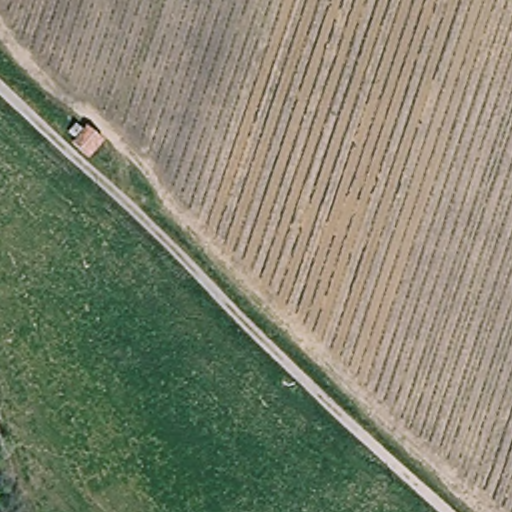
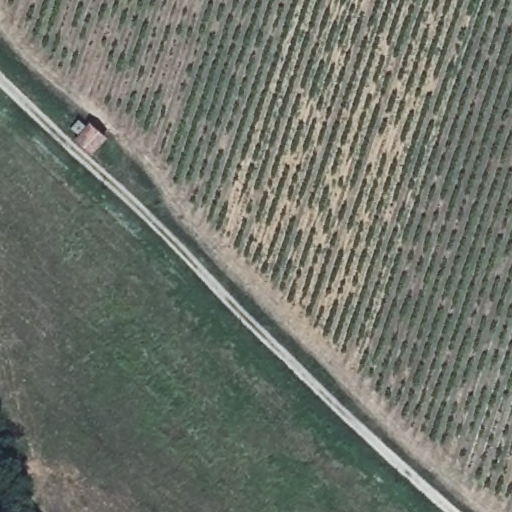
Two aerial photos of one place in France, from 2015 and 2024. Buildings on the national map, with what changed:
unchanged [(75,140),(82,132),(76,126),(84,118),(90,124),(95,120),(112,136),(92,155),(75,140)]

